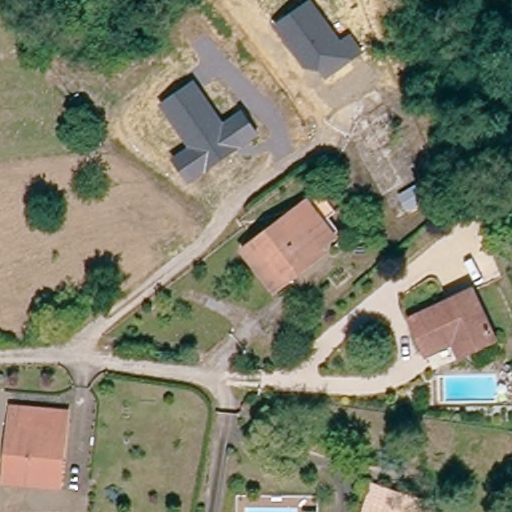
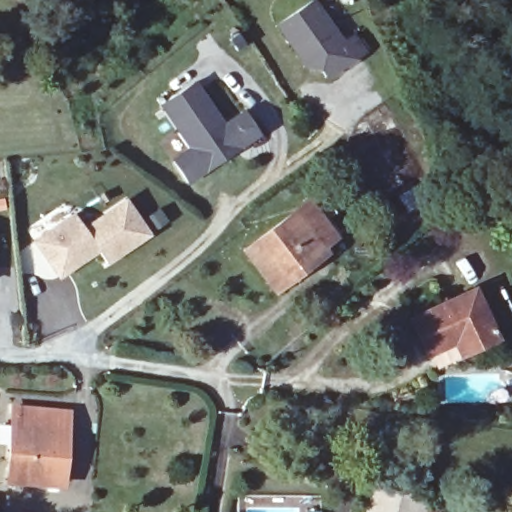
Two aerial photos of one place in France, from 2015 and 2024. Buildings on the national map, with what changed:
unchanged [(309,0),(313,0),(342,40),(351,32),(364,51),(325,79),(319,69),(304,69),(275,25),(309,0)]
unchanged [(170,159),(187,148),(159,105),(194,80),(223,122),(242,109),(259,135),(188,184),(170,159)]
unchanged [(433,193),(408,209),(401,197),(427,182),(433,193)]
new [(53,267),(34,240),(74,214),(84,229),(124,201),(146,234),(104,262),(96,249),(65,270),(59,275),(53,267)]
unchanged [(292,279),(275,292),(244,249),(294,212),(307,202),(315,214),(333,239),(320,249),(324,254),(292,279)]
unchanged [(454,343),(427,354),(411,319),(473,289),(496,339),(470,352),(461,356),(454,343)]
unchanged [(6,481),(13,408),(59,412),(69,413),(64,458),(61,486),(6,481)]
unchanged [(423,501),(419,512),(365,512),(373,486),(423,501)]

